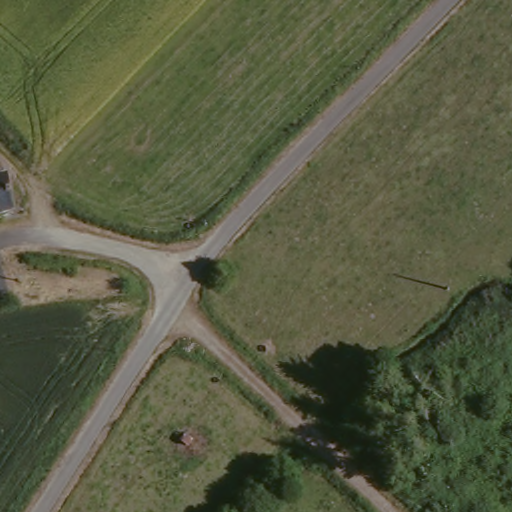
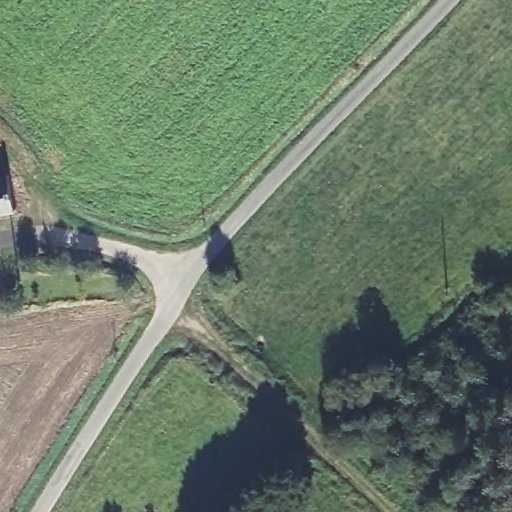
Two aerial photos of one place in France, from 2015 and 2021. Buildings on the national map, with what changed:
unchanged [(1,176),(9,207),(0,210),(0,176),(1,176)]

